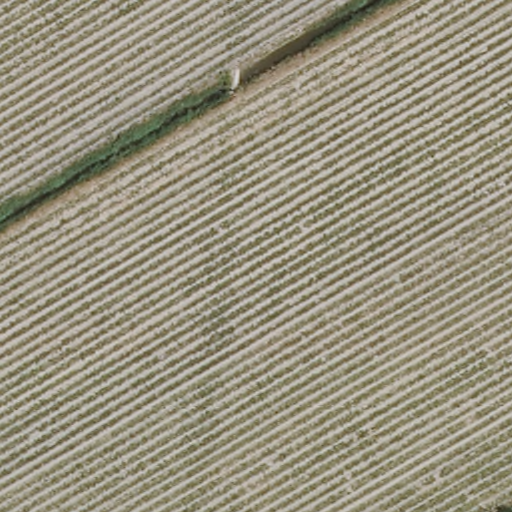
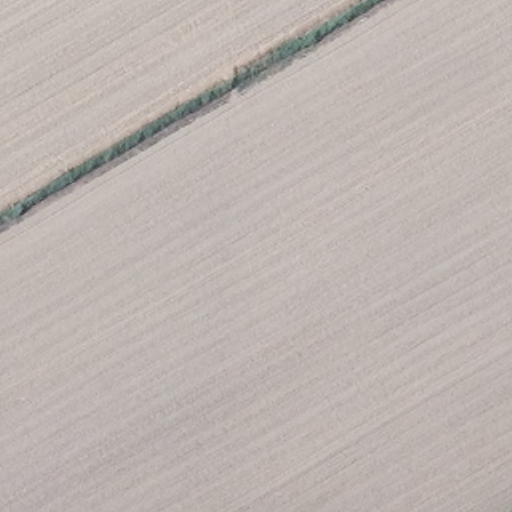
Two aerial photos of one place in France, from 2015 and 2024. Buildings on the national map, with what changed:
[]

